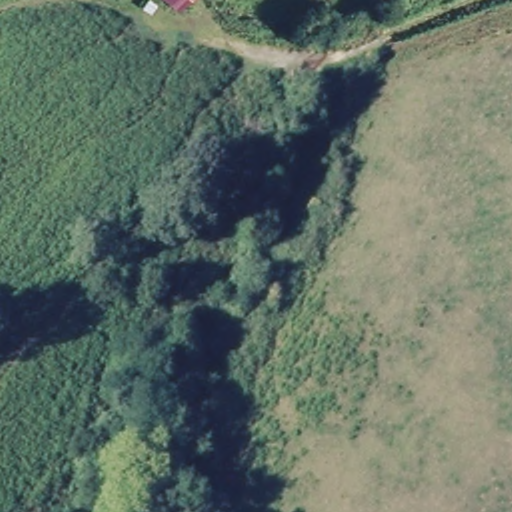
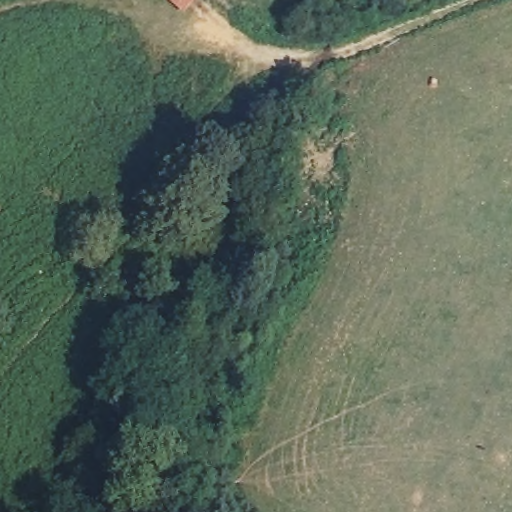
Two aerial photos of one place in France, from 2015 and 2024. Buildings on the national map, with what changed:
unchanged [(164,0),(193,0),(181,14),(164,0)]

